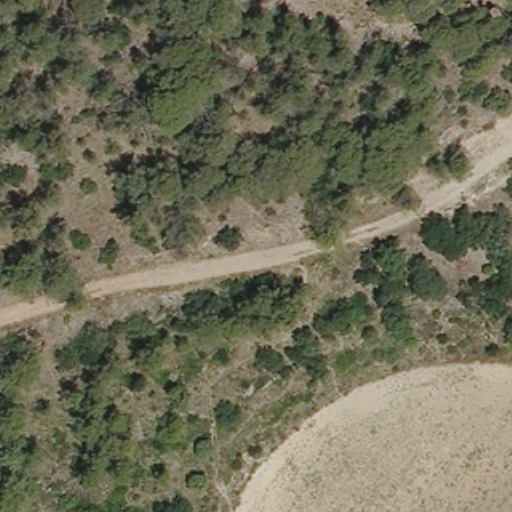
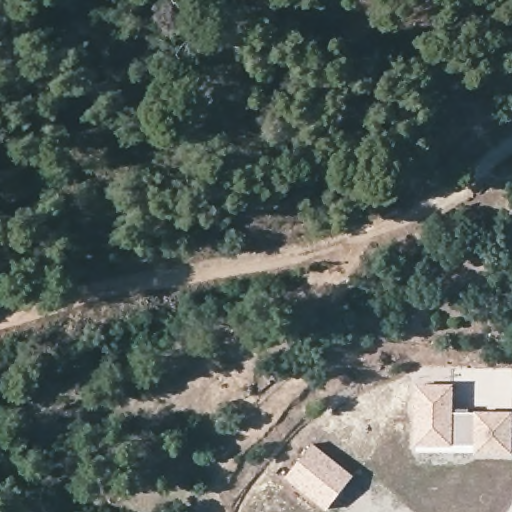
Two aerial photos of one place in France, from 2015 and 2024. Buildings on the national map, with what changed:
new [(454,408),(470,408),(470,411),(512,411),(512,454),(476,454),(475,447),(416,445),(417,384),(454,384),(454,408)]
new [(353,473),(327,510),(285,478),(314,443),(353,473)]

